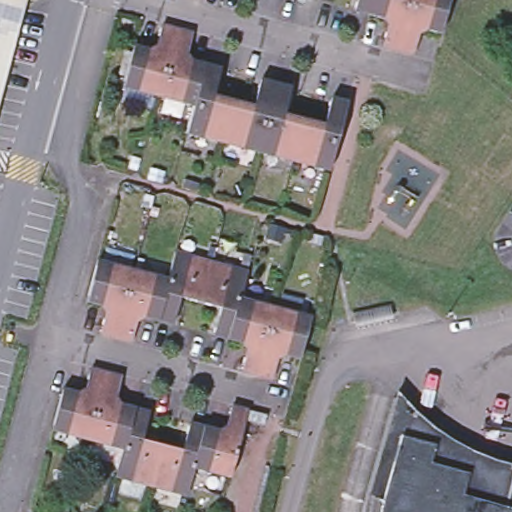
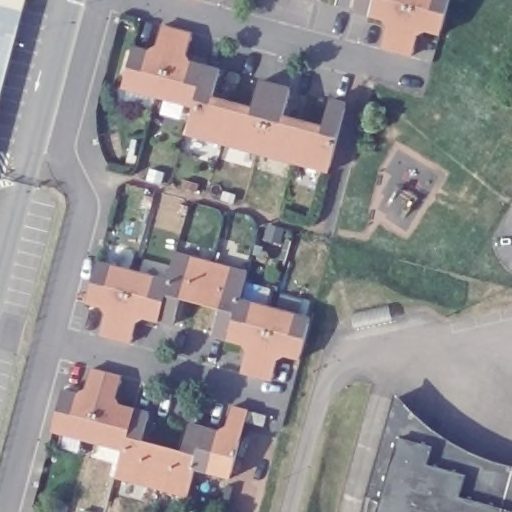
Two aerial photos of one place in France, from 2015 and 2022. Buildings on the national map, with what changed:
unchanged [(0,92),(0,0),(24,0),(0,92)]
unchanged [(207,1),(204,0),(207,0),(207,1)]
unchanged [(318,2),(312,0),(318,0),(318,2)]
unchanged [(378,19),(374,18),(375,16),(360,12),(363,0),(383,0),(378,19)]
unchanged [(383,0),(417,0),(404,53),(388,49),(395,23),(378,19),(383,0)]
unchanged [(445,37),(423,31),(417,57),(404,53),(417,0),(454,0),(445,37)]
unchanged [(161,104),(124,94),(135,53),(157,59),(164,32),(179,36),(161,104)]
unchanged [(179,36),(194,40),(187,66),(204,70),(193,112),(161,104),(179,36)]
unchanged [(204,70),(206,71),(205,74),(220,77),(214,102),(234,107),(223,149),(187,140),(193,112),(204,70)]
unchanged [(223,149),(234,107),(254,112),(260,88),(275,92),(258,158),(223,149)]
unchanged [(275,92),(290,96),(284,121),(304,126),(294,168),(258,158),(275,92)]
unchanged [(304,126),(325,131),(331,107),(348,111),(331,177),(294,168),(304,126)]
unchanged [(216,264),(205,304),(183,298),(176,323),(163,319),(162,322),(160,321),(171,281),(178,254),(216,264)]
unchanged [(111,308),(92,303),(102,263),(137,272),(119,341),(104,337),(111,308)]
unchanged [(234,341),(231,340),(232,338),(218,334),(224,309),(205,304),(216,264),(252,274),(245,300),(234,341)]
unchanged [(137,272),(171,281),(160,321),(142,316),(134,345),(119,341),(137,272)]
unchanged [(245,300),(279,309),(261,378),(245,374),(253,345),(234,341),(245,300)]
unchanged [(279,309),(316,319),(305,359),(284,354),(276,382),(261,378),(279,309)]
unchanged [(105,380),(87,446),(51,437),(62,397),(83,403),(90,376),(105,380)]
unchanged [(105,380),(120,384),(113,410),(131,415),(121,455),(87,446),(105,380)]
unchanged [(388,421),(410,428),(407,437),(429,444),(427,453),(468,465),(466,472),(512,486),(512,512),(362,512),(362,511),(363,503),(361,502),(391,402),(393,403),(388,421)]
unchanged [(225,440),(232,413),(245,416),(238,443),(240,444),(230,484),(195,475),(205,437),(205,434),(225,440)]
unchanged [(134,416),(134,418),(148,422),(141,448),(161,453),(150,494),(113,484),(121,455),(131,415),(134,416)]
unchanged [(246,428),(248,420),(264,424),(262,432),(246,428)]
unchanged [(161,453),(182,459),(189,433),(205,437),(195,475),(188,503),(150,494),(161,453)]

